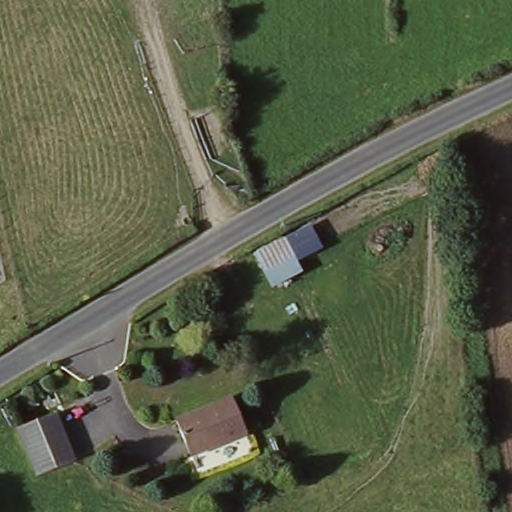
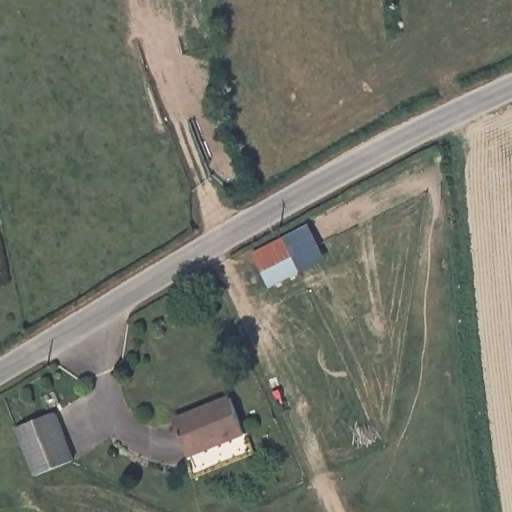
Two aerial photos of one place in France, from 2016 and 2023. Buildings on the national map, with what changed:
unchanged [(283,243),(293,262),(264,278),(254,259),(283,243)]
unchanged [(237,407),(252,439),(199,463),(184,431),(237,407)]
unchanged [(64,422),(78,471),(39,483),(24,434),(64,422)]

